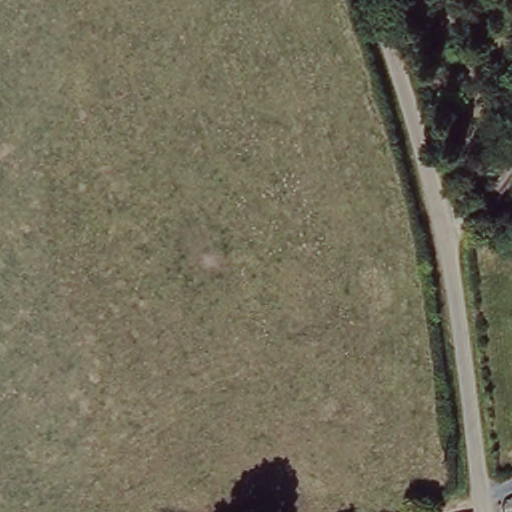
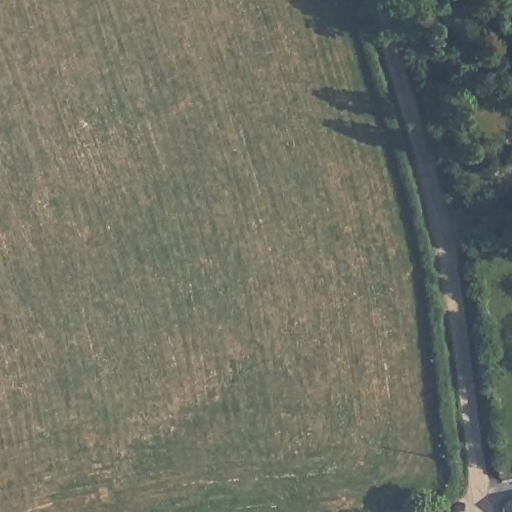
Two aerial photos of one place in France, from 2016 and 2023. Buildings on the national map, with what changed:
unchanged [(339,496),(340,512),(315,512),(314,498),(339,496)]

